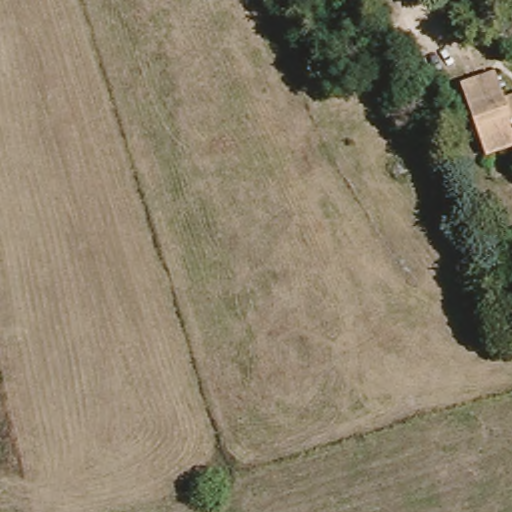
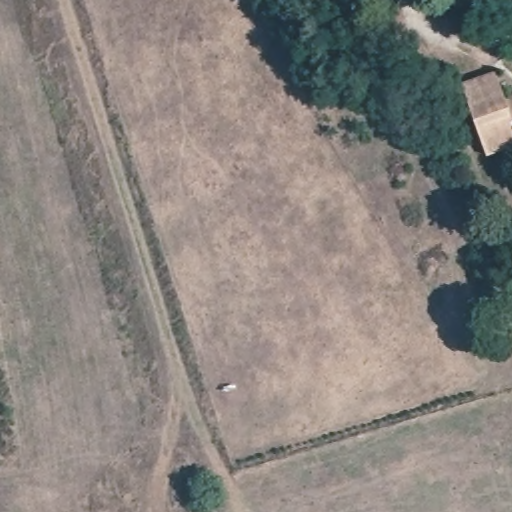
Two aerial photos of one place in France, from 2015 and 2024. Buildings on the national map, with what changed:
unchanged [(496,79),(504,105),(512,102),(512,152),(485,161),(460,91),(496,79)]

